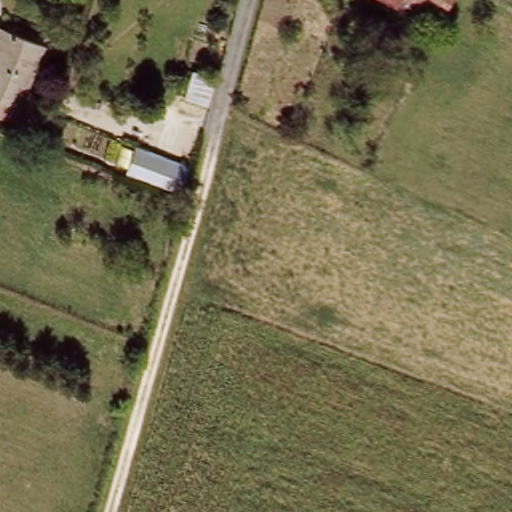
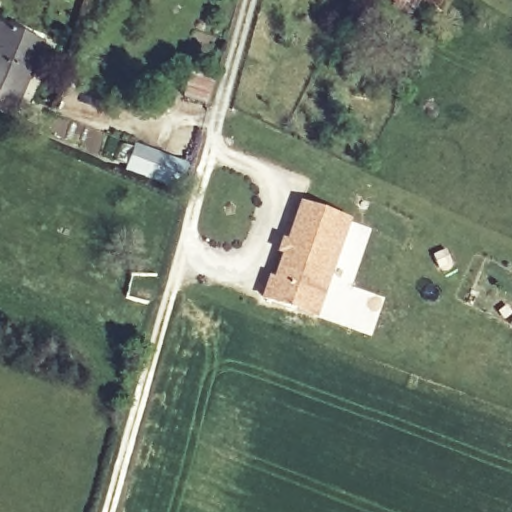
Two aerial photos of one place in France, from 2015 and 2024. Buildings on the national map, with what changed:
unchanged [(392,3),(385,0),(394,0),(392,3)]
unchanged [(439,6),(426,0),(442,0),(439,6)]
unchanged [(0,24),(6,27),(0,43),(0,24)]
unchanged [(16,105),(0,98),(0,43),(6,27),(43,43),(16,105)]
unchanged [(191,80),(186,77),(193,50),(200,52),(204,45),(221,53),(209,106),(187,99),(191,80)]
unchanged [(12,115),(0,110),(0,98),(16,105),(12,115)]
unchanged [(164,182),(129,170),(136,147),(170,159),(164,182)]
new [(292,312),(260,301),(266,282),(271,284),(298,207),(344,224),(317,302),(311,319),(292,312)]

